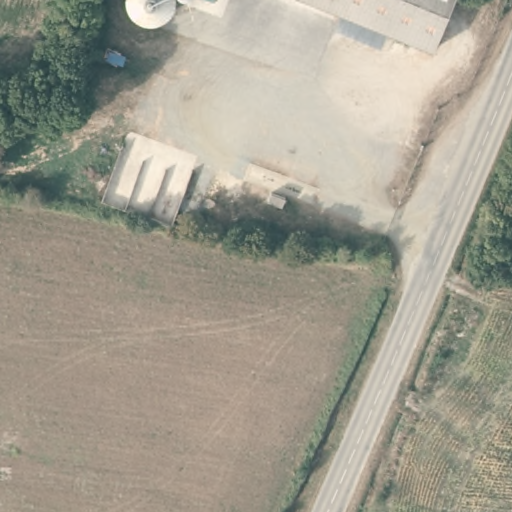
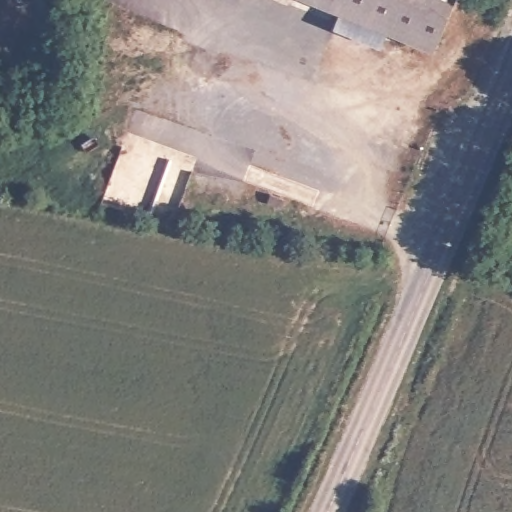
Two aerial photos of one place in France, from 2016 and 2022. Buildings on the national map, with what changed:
unchanged [(124,6),(125,0),(177,0),(176,6),(170,16),(160,23),(141,24),(129,17),(124,6)]
unchanged [(304,0),(447,0),(429,47),(304,0)]

